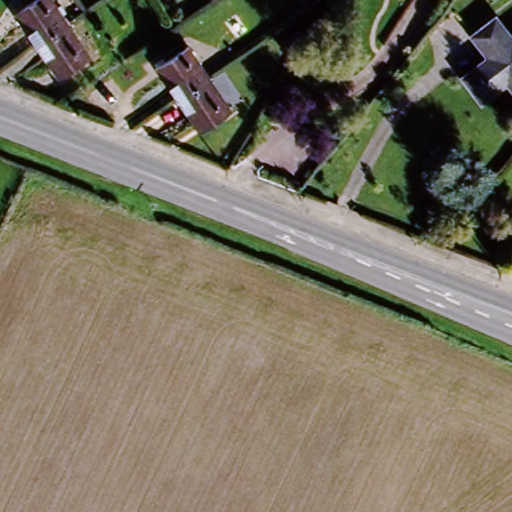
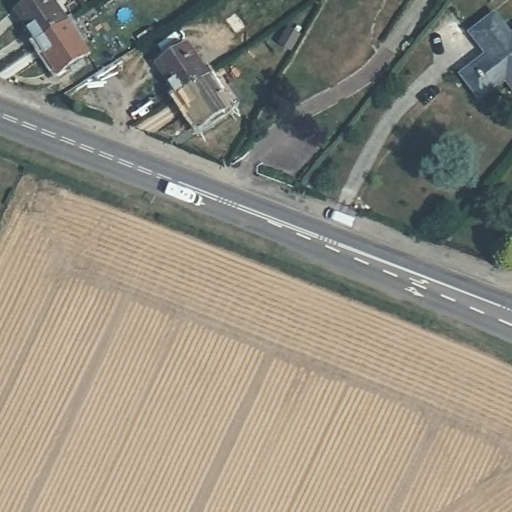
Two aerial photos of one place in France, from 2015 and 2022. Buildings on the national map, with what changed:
unchanged [(41,39),(23,13),(29,8),(25,2),(28,0),(57,0),(70,19),(41,39)]
unchanged [(474,65),(490,52),(473,30),(496,11),(512,32),(512,81),(509,77),(493,89),(474,65)]
unchanged [(91,50),(68,66),(63,59),(58,63),(41,39),(70,19),(91,50)]
unchanged [(164,66),(171,61),(168,56),(190,41),(212,74),(183,93),(164,66)]
unchanged [(206,115),(199,119),(183,93),(212,74),(233,105),(209,121),(206,115)]

